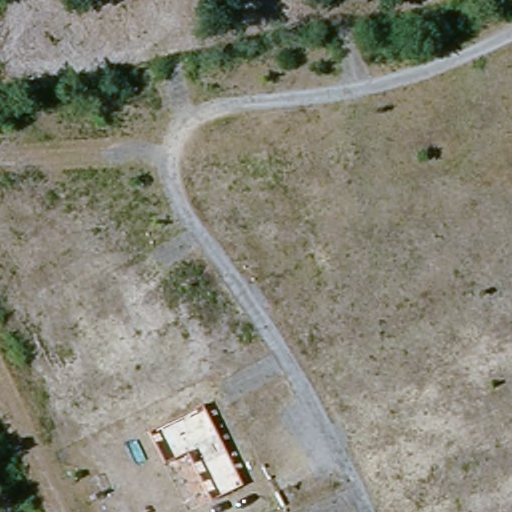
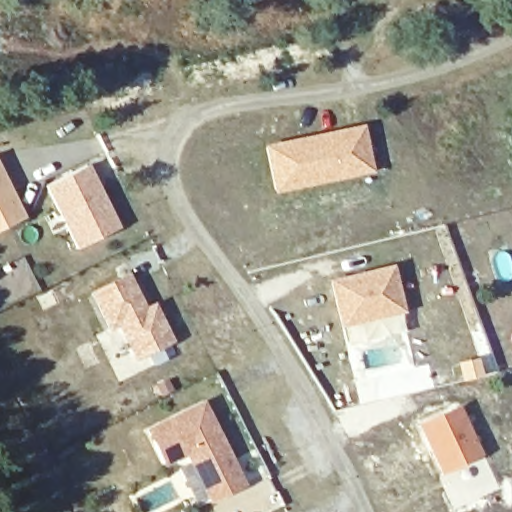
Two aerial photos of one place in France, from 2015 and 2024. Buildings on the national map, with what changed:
new [(364,124),(374,173),(275,194),(265,145),(364,124)]
new [(85,168),(117,230),(77,250),(46,188),(85,168)]
new [(0,231),(0,175),(22,220),(0,231)]
new [(394,263),(406,314),(342,330),(328,280),(394,263)]
new [(122,279),(140,314),(152,307),(170,342),(141,357),(124,323),(110,330),(92,295),(122,279)]
new [(492,352),(497,371),(462,382),(457,362),(492,352)]
new [(186,458),(165,469),(145,429),(203,401),(245,487),(209,506),(205,494),(193,500),(180,470),(189,466),(186,458)]
new [(460,406),(483,456),(452,471),(440,476),(416,426),(460,406)]
new [(483,456),(500,488),(467,503),(452,471),(483,456)]

